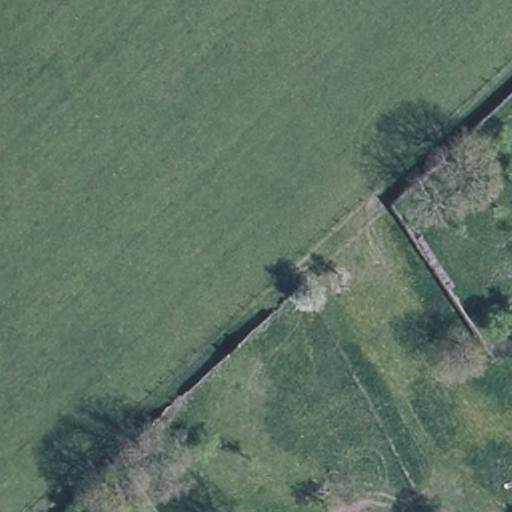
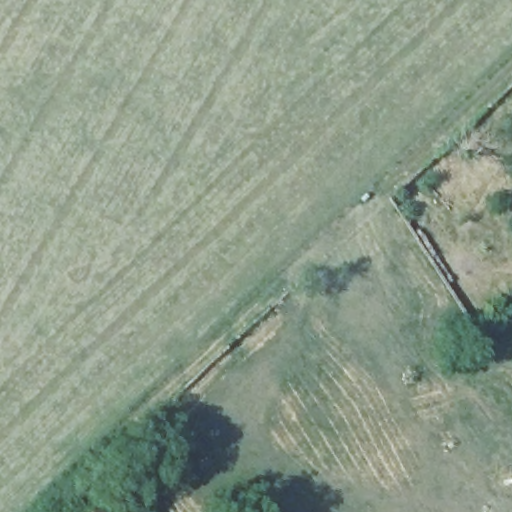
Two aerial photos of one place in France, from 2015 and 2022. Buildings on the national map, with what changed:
unchanged [(97,512),(94,512),(95,511),(97,512)]

